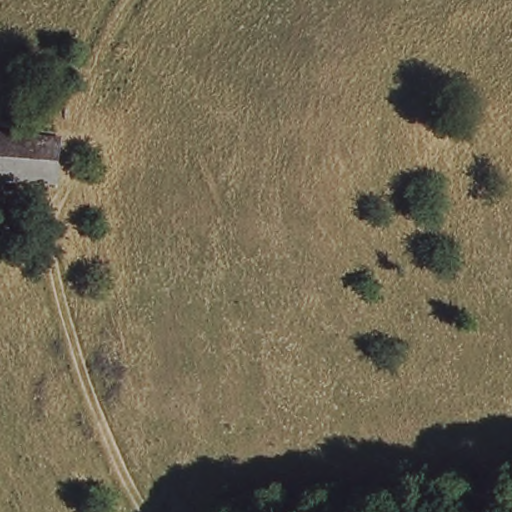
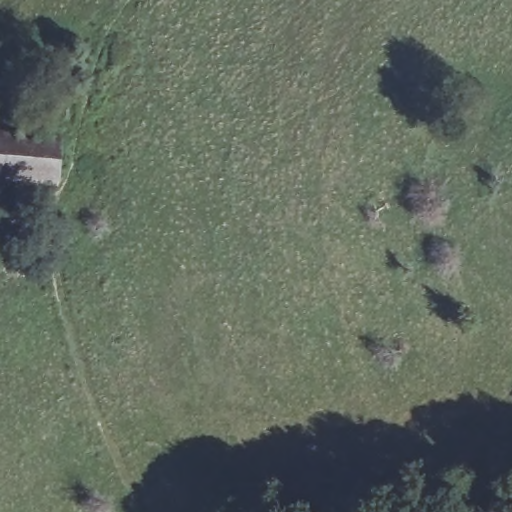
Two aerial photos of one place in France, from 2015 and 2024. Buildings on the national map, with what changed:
unchanged [(54,180),(0,180),(0,133),(46,134),(54,180)]

